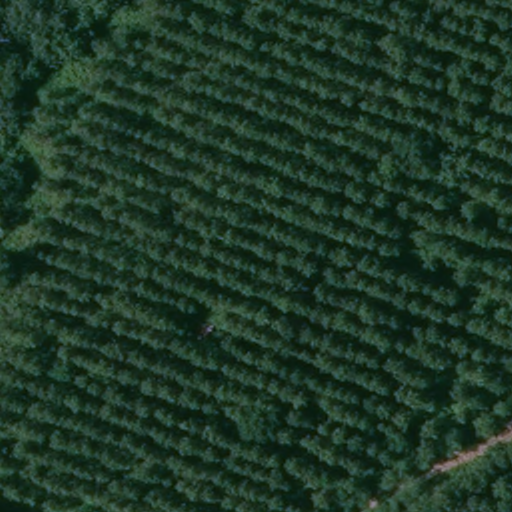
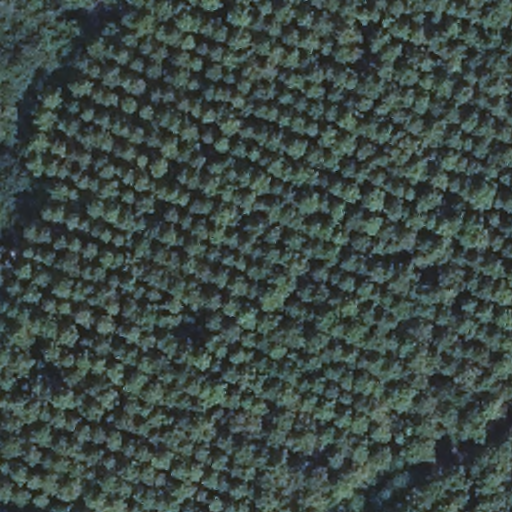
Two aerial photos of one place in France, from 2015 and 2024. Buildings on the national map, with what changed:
unchanged [(216,325),(207,341),(180,326),(188,310),(216,325)]

